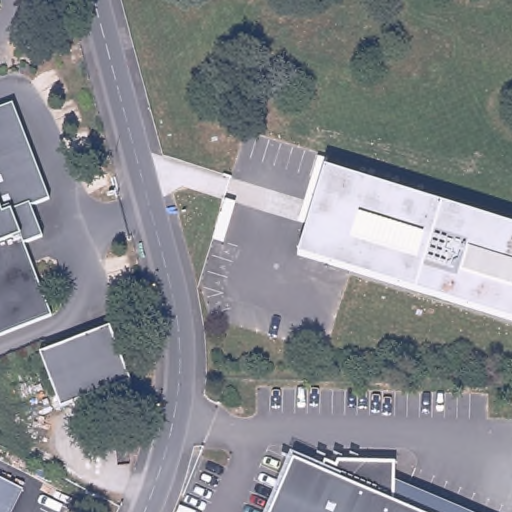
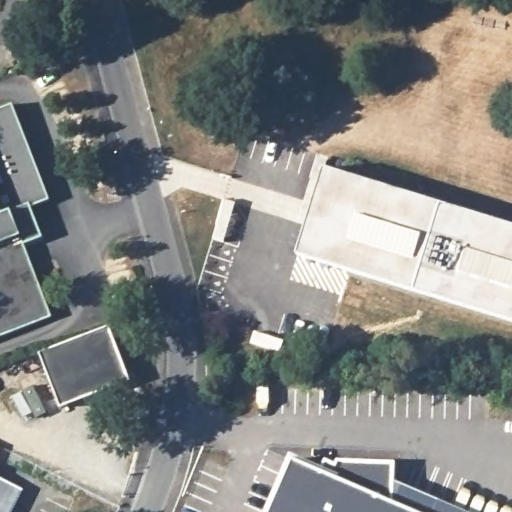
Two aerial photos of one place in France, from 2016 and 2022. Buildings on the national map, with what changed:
unchanged [(49,201),(30,209),(42,239),(23,246),(51,318),(0,338),(0,111),(12,106),(49,201)]
unchanged [(512,226),(512,321),(298,255),(325,169),(512,226)]
unchanged [(234,203),(223,242),(213,240),(224,201),(234,203)]
unchanged [(109,327),(126,372),(120,386),(59,409),(38,355),(109,327)]
unchanged [(319,467),(330,471),(332,466),(389,468),(389,486),(388,508),(397,512),(266,512),(287,464),(315,476),(319,467)]
unchanged [(12,512),(0,512),(0,483),(21,493),(12,512)]
unchanged [(389,486),(449,512),(397,512),(388,508),(389,486)]

